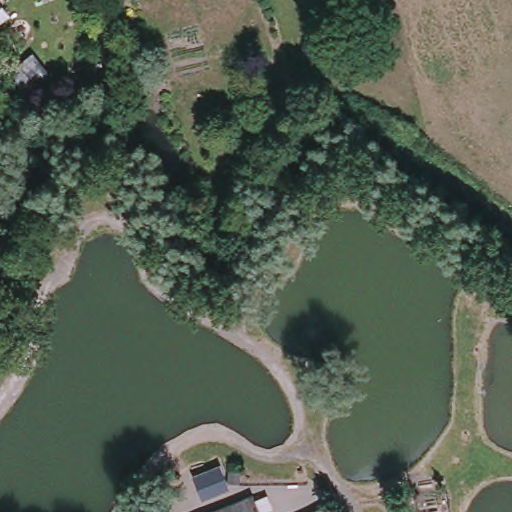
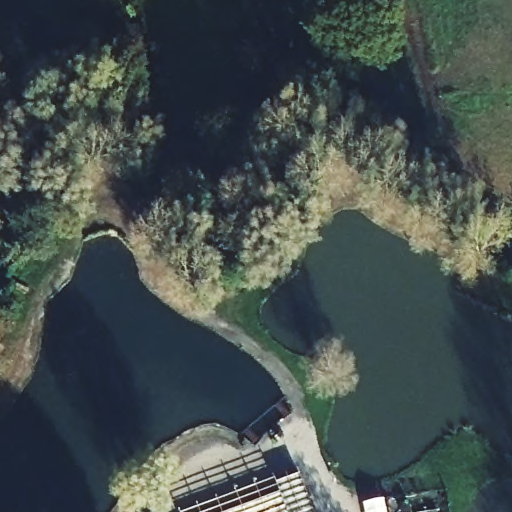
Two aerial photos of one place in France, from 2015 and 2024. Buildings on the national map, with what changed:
unchanged [(0,21),(0,1),(11,14),(0,21)]
unchanged [(257,490),(261,512),(193,512),(203,507),(196,483),(225,472),(235,497),(257,490)]

